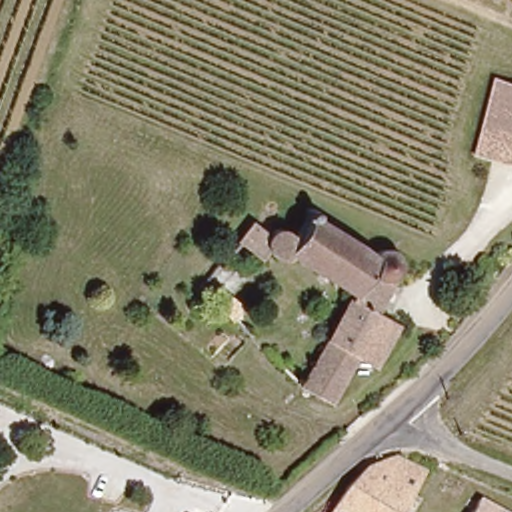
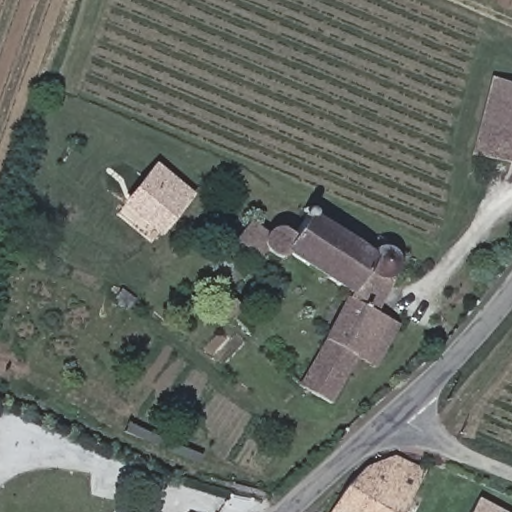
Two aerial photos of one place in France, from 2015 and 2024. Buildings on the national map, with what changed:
unchanged [(512,82),(512,162),(465,149),(485,90),(491,75),(512,82)]
new [(122,204),(156,162),(196,195),(161,236),(122,204)]
unchanged [(247,221),(257,215),(265,216),(278,224),(288,217),(287,202),(299,199),(302,212),(303,216),(361,242),(375,234),(386,234),(393,241),(398,255),(372,309),(392,320),(369,362),(352,355),(349,362),(324,406),(298,380),(345,292),(274,251),(251,252),(242,249),(239,239),(238,233),(247,221)]
unchanged [(399,512),(326,512),(350,477),(395,459),(424,470),(399,512)]
unchanged [(468,510),(474,512),(468,512),(468,510)]

